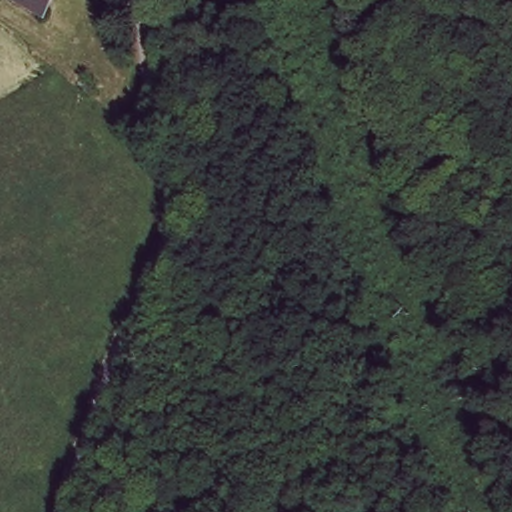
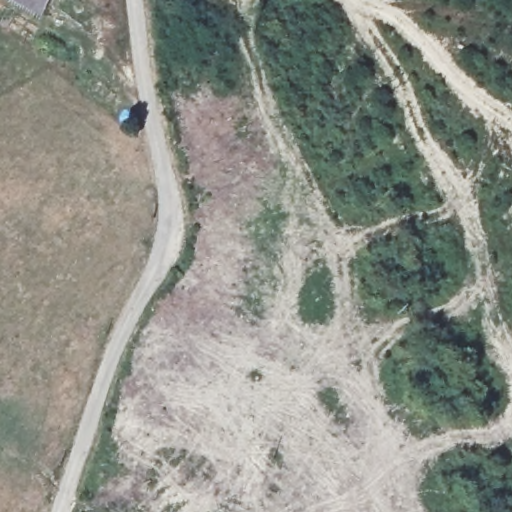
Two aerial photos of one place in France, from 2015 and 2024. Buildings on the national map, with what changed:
unchanged [(43,11),(23,0),(50,0),(43,11)]

